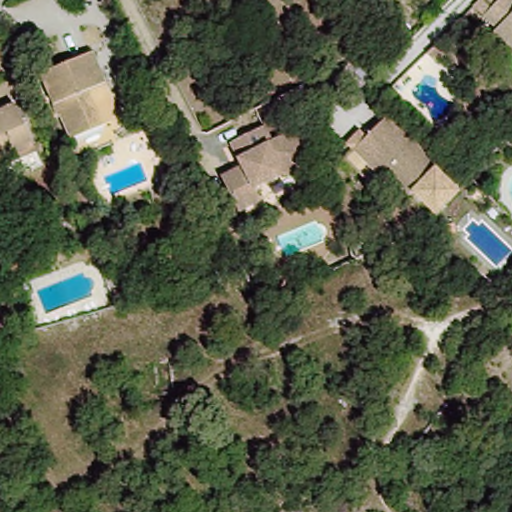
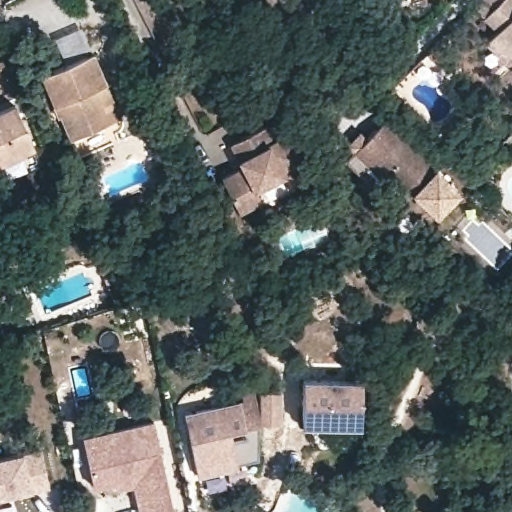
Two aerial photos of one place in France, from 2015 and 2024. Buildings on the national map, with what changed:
unchanged [(502,25),(489,11),(501,0),(512,0),(512,55),(492,35),(502,25)]
unchanged [(55,106),(42,75),(93,52),(107,83),(122,119),(112,122),(70,140),(61,115),(58,116),(55,106)]
unchanged [(15,110),(35,152),(0,167),(0,116),(15,110)]
unchanged [(442,161),(413,190),(391,167),(385,172),(358,144),(392,110),(442,161)]
unchanged [(268,142),(282,135),(304,138),(299,176),(278,174),(249,188),(255,200),(232,210),(216,176),(236,165),(225,142),(259,126),(268,142)]
unchanged [(444,170),(467,192),(441,219),(418,195),(444,170)]
unchanged [(0,332),(0,320),(7,318),(11,331),(1,335),(0,332)]
new [(305,380),(363,382),(362,426),(304,425),(305,380)]
new [(240,467),(200,477),(185,415),(244,401),(242,394),(260,390),(282,391),(281,425),(259,424),(258,453),(258,460),(239,464),(240,467)]
new [(172,512),(140,512),(134,485),(115,488),(114,482),(92,487),(82,438),(153,423),(172,512)]
new [(22,453),(22,455),(40,450),(48,487),(30,491),(29,488),(0,495),(0,458),(22,453)]

